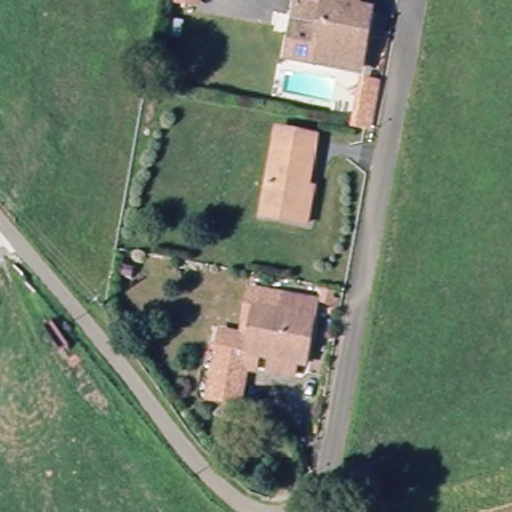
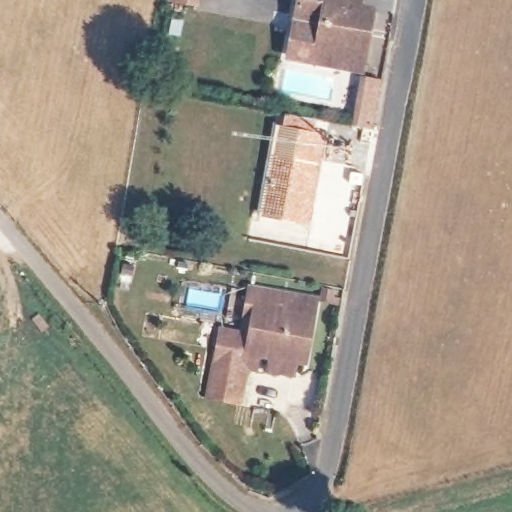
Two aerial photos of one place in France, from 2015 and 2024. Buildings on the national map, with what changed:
unchanged [(339,65),(291,55),(297,14),(300,0),(354,0),(352,9),(371,12),(364,53),(361,69),(339,65)]
unchanged [(279,126),(317,134),(308,176),(315,178),(307,215),(264,205),(279,126)]
unchanged [(225,327),(253,333),(260,301),(285,306),(288,293),(320,299),(314,332),(309,331),(304,357),(300,357),(297,375),(273,370),(277,352),(261,349),(259,362),(248,360),(241,397),(212,391),(225,327)]

